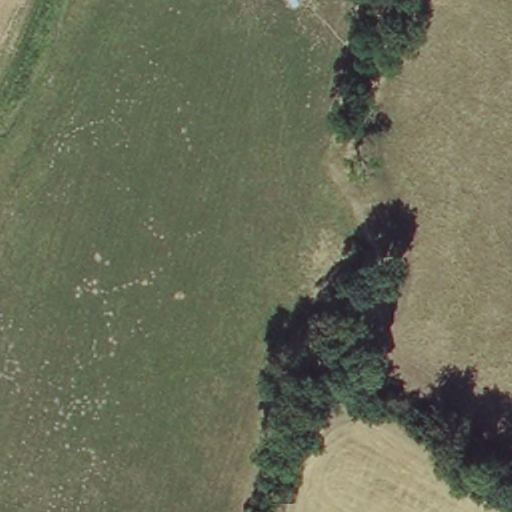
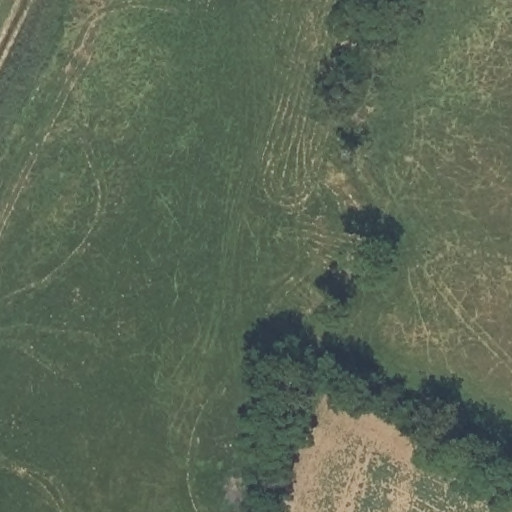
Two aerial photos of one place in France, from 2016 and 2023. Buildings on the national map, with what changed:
[]

